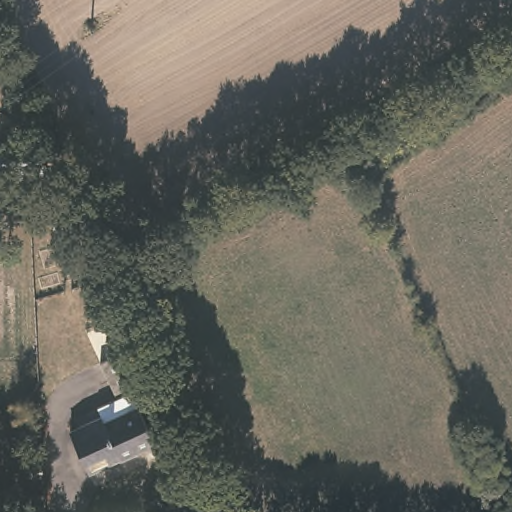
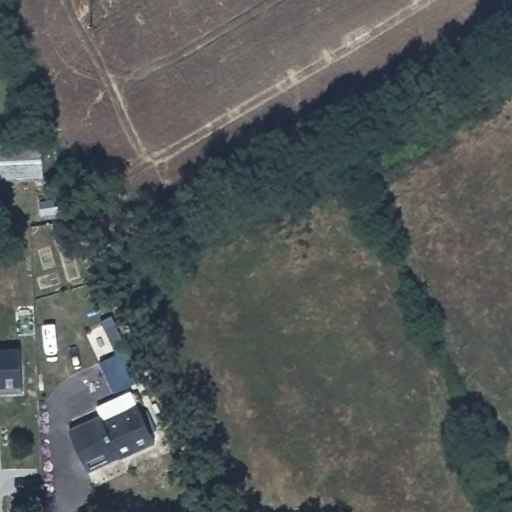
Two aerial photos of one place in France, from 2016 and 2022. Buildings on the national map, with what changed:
new [(24,393),(0,395),(0,348),(21,348),(24,393)]
unchanged [(136,382),(110,395),(94,363),(120,350),(136,382)]
unchanged [(150,442),(118,457),(111,457),(83,472),(64,432),(98,416),(100,422),(132,407),(150,442)]

